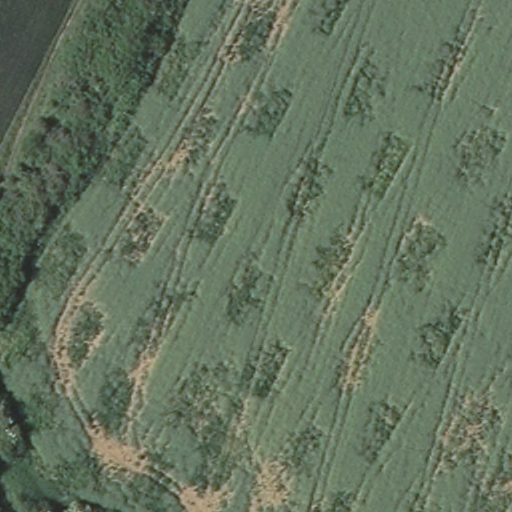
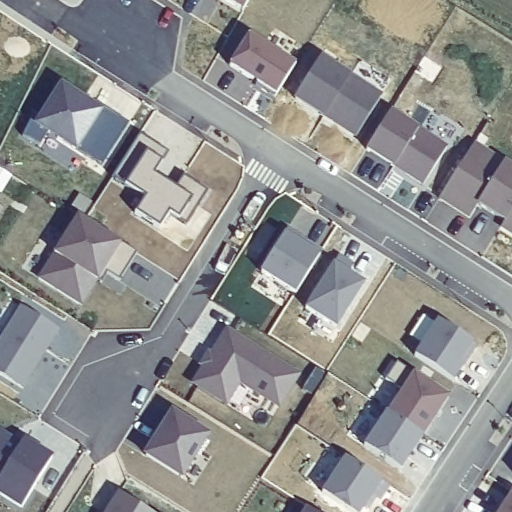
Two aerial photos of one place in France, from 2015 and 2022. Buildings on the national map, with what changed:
new [(229,0),(248,0),(243,9),(229,0)]
new [(247,38),(294,68),(273,101),(254,89),(256,87),(228,69),(247,38)]
new [(324,115),(322,119),(293,100),(323,56),(384,94),(355,137),(324,115)]
new [(24,135),(35,115),(41,115),(60,84),(101,109),(103,107),(129,123),(101,165),(81,148),(77,154),(45,134),(40,144),(24,135)]
new [(395,168),(365,151),(392,110),(420,129),(448,146),(421,185),(395,168)]
new [(141,134),(169,154),(162,164),(154,176),(174,188),(184,176),(208,192),(186,226),(178,219),(169,212),(159,228),(135,214),(146,197),(127,185),(114,178),(141,134)]
new [(505,222),(477,206),(470,219),(440,199),(475,143),(505,163),(512,167),(512,235),(500,229),(505,222)]
new [(54,256),(79,216),(123,244),(137,253),(119,281),(106,267),(97,283),(81,309),(38,280),(54,256)]
new [(297,237),(307,243),(322,252),(295,295),(261,273),(287,230),(297,237)]
new [(306,308),(333,264),(365,283),(336,329),(306,308)]
new [(0,374),(0,336),(20,305),(60,329),(23,390),(0,374)]
new [(437,320),(473,345),(460,365),(464,367),(453,383),(414,357),(437,320)]
new [(205,366),(208,368),(214,359),(211,357),(227,330),(299,375),(279,407),(240,382),(226,405),(193,384),(205,366)]
new [(201,366),(208,354),(211,356),(211,357),(214,359),(208,368),(205,366),(204,367),(201,366)]
new [(388,411),(402,389),(386,380),(398,363),(414,372),(450,396),(425,435),(388,411)]
new [(143,455),(172,411),(211,435),(182,480),(143,455)]
new [(0,498),(0,430),(23,442),(24,439),(53,457),(21,511),(0,498)]
new [(380,502),(372,497),(361,512),(348,512),(322,494),(345,459),(389,488),(380,502)]
new [(152,512),(106,512),(119,492),(152,512)]
new [(500,512),(512,493),(512,512),(500,512)]
new [(372,497),(376,500),(368,511),(364,508),(372,497)]
new [(311,512),(304,512),(306,509),(311,512)]

